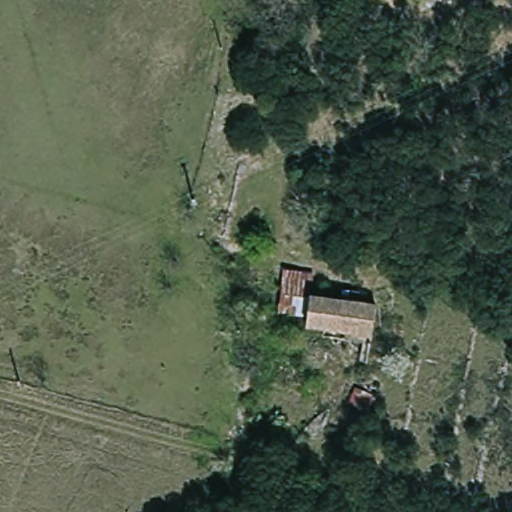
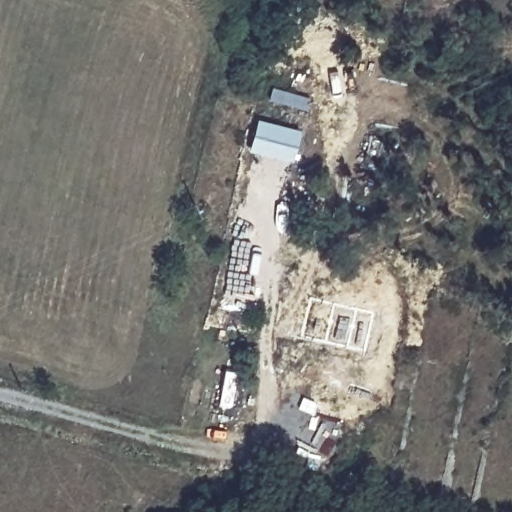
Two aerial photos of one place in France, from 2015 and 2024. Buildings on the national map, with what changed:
unchanged [(312,274),(310,294),(295,293),(292,308),(278,305),(283,272),(312,274)]
unchanged [(348,294),(361,295),(360,306),(381,309),(377,340),(309,332),(312,301),(347,305),(348,294)]

